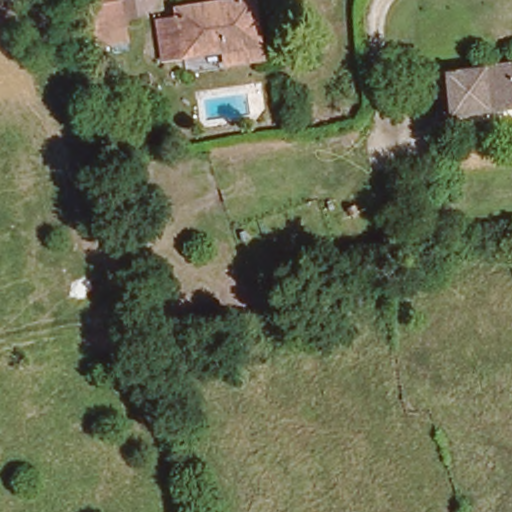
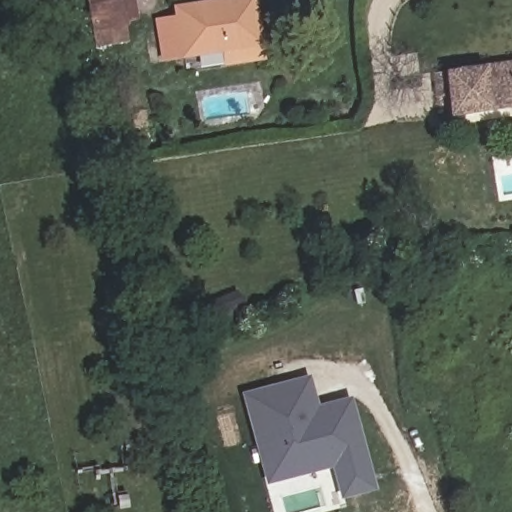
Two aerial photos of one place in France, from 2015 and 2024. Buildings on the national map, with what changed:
unchanged [(89,0),(124,0),(126,18),(92,22),(89,0)]
unchanged [(178,15),(177,4),(210,0),(256,0),(261,42),(182,51),(162,54),(158,16),(178,15)]
unchanged [(512,58),(512,100),(450,106),(444,65),(512,58)]
unchanged [(155,130),(141,131),(139,114),(153,112),(155,130)]
new [(339,500),(331,469),(265,486),(241,393),(311,375),(318,404),(352,396),(377,491),(339,500)]

